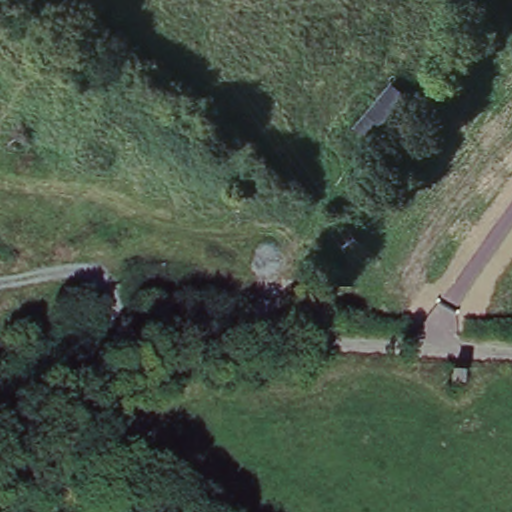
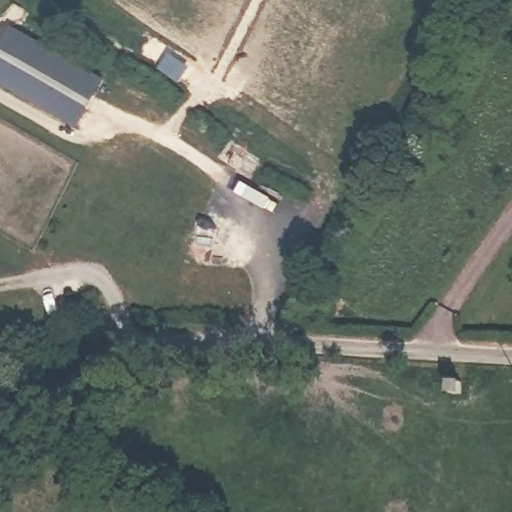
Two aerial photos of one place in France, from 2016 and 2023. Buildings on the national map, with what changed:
new [(98,76),(69,123),(0,80),(0,30),(7,20),(98,76)]

